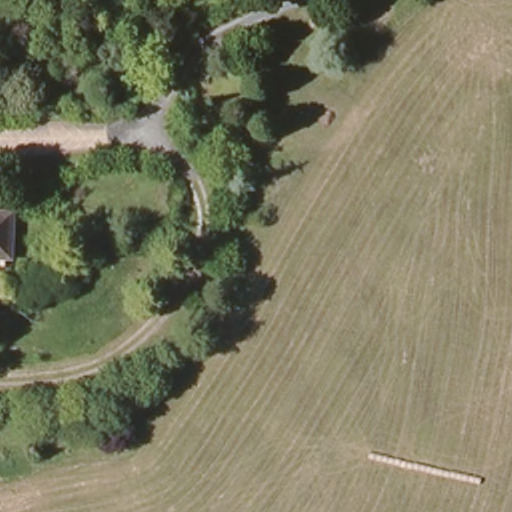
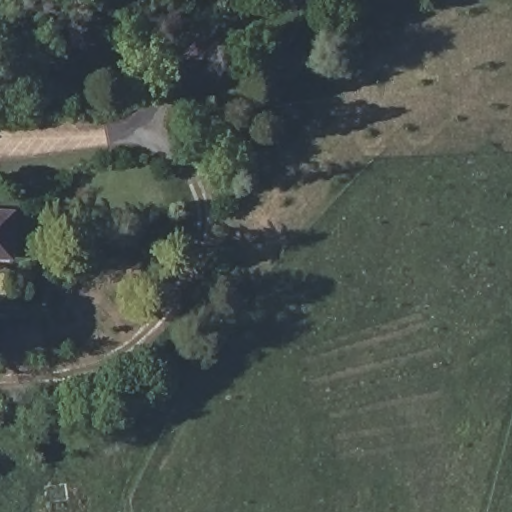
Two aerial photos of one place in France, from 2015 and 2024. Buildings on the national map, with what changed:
unchanged [(13,266),(0,264),(0,221),(17,223),(13,266)]

